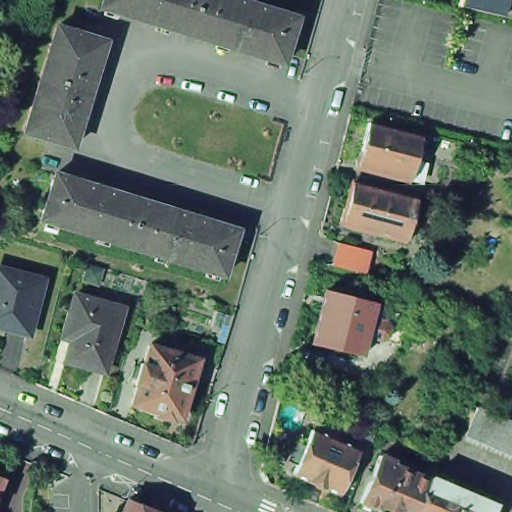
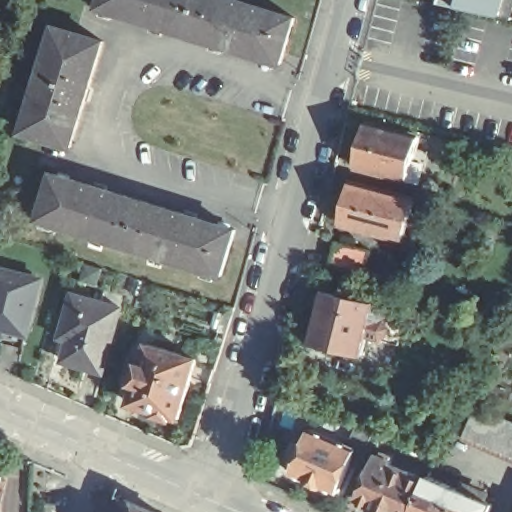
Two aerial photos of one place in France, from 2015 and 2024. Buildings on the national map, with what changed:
unchanged [(233,0),(290,17),(276,63),(239,51),(238,52),(225,49),(225,47),(145,22),(145,24),(131,20),(132,19),(95,7),(97,0),(233,0)]
unchanged [(457,6),(459,0),(504,0),(500,16),(480,11),(459,6),(457,6)]
unchanged [(18,132),(51,26),(98,41),(85,87),(86,87),(81,101),(80,100),(66,146),(18,132)]
unchanged [(407,182),(399,179),(398,180),(357,169),(350,170),(345,166),(345,160),(348,154),(356,122),(410,136),(403,162),(412,164),(407,182)]
unchanged [(87,186),(88,184),(101,189),(101,190),(178,213),(178,212),(192,216),(191,217),(230,230),(216,275),(35,219),(48,174),(87,186)]
unchanged [(403,198),(393,237),(385,235),(385,237),(331,224),(331,222),(330,219),(332,207),(335,206),(341,182),(403,198)]
unchanged [(367,251),(362,272),(330,265),(336,242),(367,251)]
unchanged [(22,332),(0,327),(0,270),(35,280),(22,332)]
unchanged [(363,304),(376,307),(373,319),(376,320),(380,327),(377,335),(370,339),(355,336),(350,354),(301,342),(314,292),(363,304)]
unchanged [(116,312),(100,371),(82,366),(80,372),(58,366),(65,344),(68,332),(60,329),(68,298),(116,312)]
unchanged [(191,358),(173,418),(166,416),(165,419),(150,415),(151,412),(125,403),(130,384),(128,383),(134,362),(136,363),(142,344),(191,358)]
unchanged [(500,452),(486,447),(473,441),(459,435),(471,407),(485,413),(498,418),(511,425),(512,425),(512,458),(500,452)]
unchanged [(346,453),(327,497),(312,491),(311,492),(296,486),(296,485),(281,478),(300,435),(346,453)]
unchanged [(366,508),(367,507),(352,502),(372,455),(376,456),(378,452),(388,457),(386,461),(387,461),(386,464),(421,479),(407,512),(375,512),(366,508)]
unchanged [(421,479),(423,476),(463,492),(480,500),(488,503),(485,512),(407,512),(421,479)]
unchanged [(120,499),(144,510),(149,512),(114,512),(120,499)]

